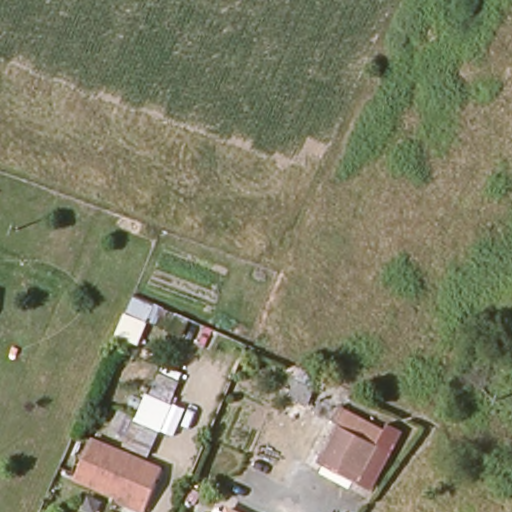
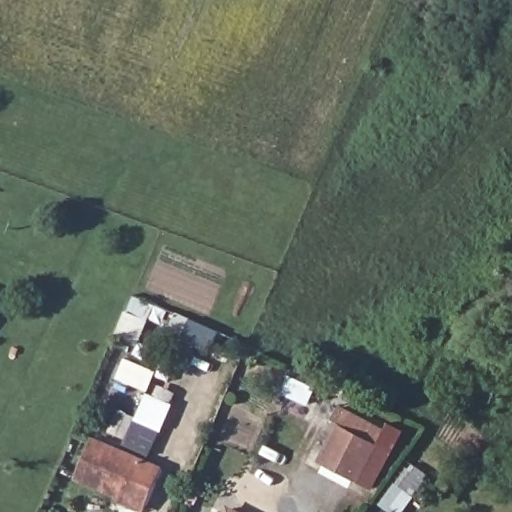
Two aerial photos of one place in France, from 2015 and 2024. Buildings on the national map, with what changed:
unchanged [(321,462),(346,410),(364,420),(372,408),(405,429),(373,491),(321,462)]
unchanged [(74,482),(93,435),(123,447),(137,416),(164,428),(153,458),(169,464),(150,512),(141,512),(74,482)]
unchanged [(225,508),(233,512),(223,512),(225,508)]

